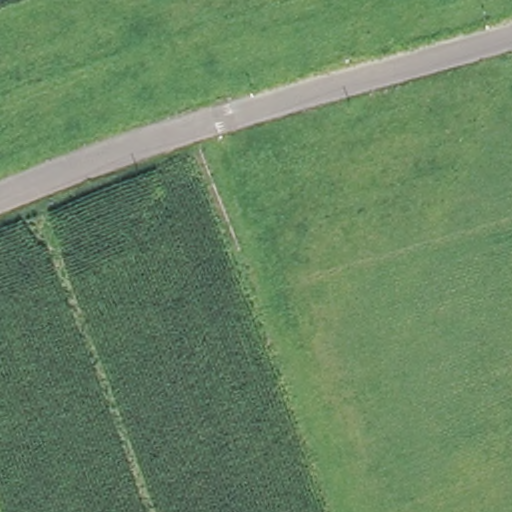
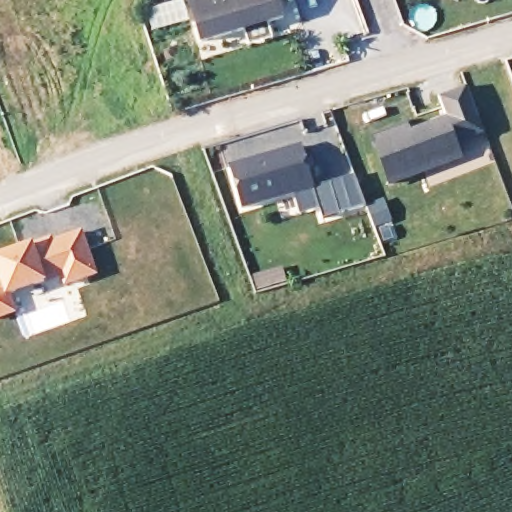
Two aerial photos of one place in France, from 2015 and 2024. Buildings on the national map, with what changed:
new [(214,0),(274,0),(281,20),(200,45),(189,7),(214,0)]
new [(407,134),(428,126),(427,122),(442,117),(435,100),(463,89),(474,117),(479,131),(453,141),(458,155),(387,183),(369,138),(404,125),(407,134)]
new [(300,146),(313,186),(245,209),(231,168),(300,146)]
new [(84,231),(99,274),(65,286),(62,277),(13,294),(17,312),(0,318),(0,256),(35,245),(84,231)]

